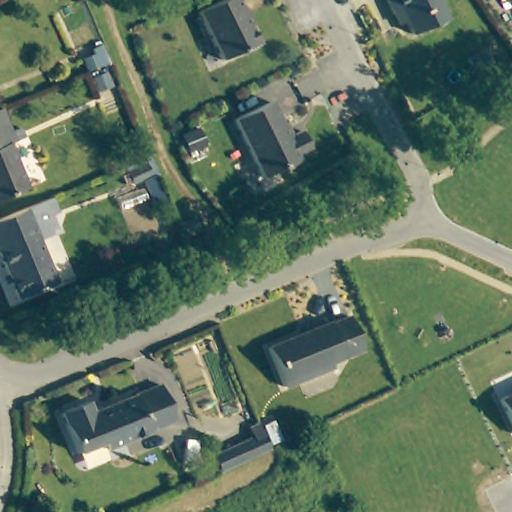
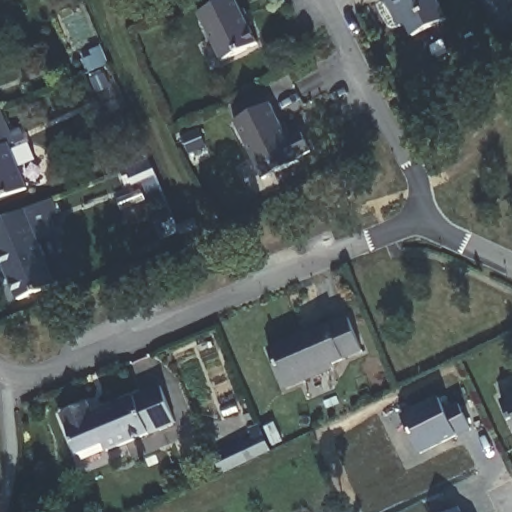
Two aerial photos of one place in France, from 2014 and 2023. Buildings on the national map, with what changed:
unchanged [(260,45),(225,63),(201,14),(230,0),(239,0),(260,45)]
unchanged [(448,22),(414,37),(403,15),(396,18),(388,0),(438,0),(448,22)]
unchanged [(107,74),(113,87),(100,92),(95,80),(107,74)]
unchanged [(273,105),(290,140),(304,134),(313,153),(300,159),(301,163),(265,180),(237,122),(273,105)]
unchanged [(6,120),(20,153),(15,156),(32,199),(0,212),(0,122),(6,120)]
unchanged [(150,164),(155,176),(137,183),(132,171),(150,164)]
unchanged [(10,222),(40,210),(45,224),(34,229),(59,289),(22,304),(2,256),(4,256),(0,247),(0,226),(10,222)]
unchanged [(179,223),(195,216),(200,226),(182,233),(179,223)]
unchanged [(362,352),(330,365),(332,370),(285,390),(268,351),(330,326),(330,327),(348,319),(362,352)]
unchanged [(173,421),(102,450),(99,443),(75,453),(59,413),(85,402),(90,413),(158,384),(173,421)]
new [(447,407),(461,401),(473,425),(422,450),(404,412),(441,394),(447,407)]
unchanged [(512,397),(512,422),(502,402),(512,397)]
unchanged [(265,453),(250,462),(241,443),(255,437),(253,433),(262,429),(271,450),(265,453)]
new [(464,512),(447,512),(460,505),(464,512)]

